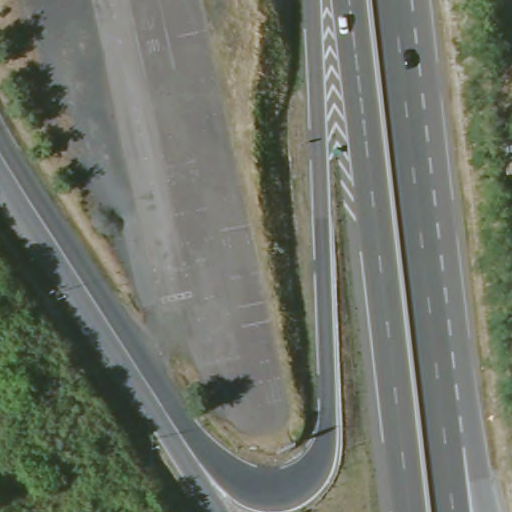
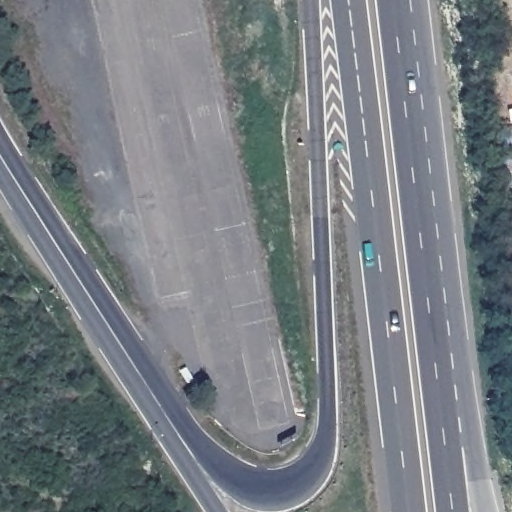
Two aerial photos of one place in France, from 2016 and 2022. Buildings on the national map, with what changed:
[]

